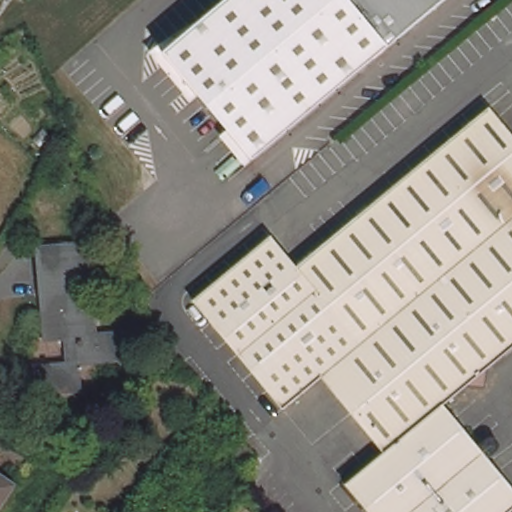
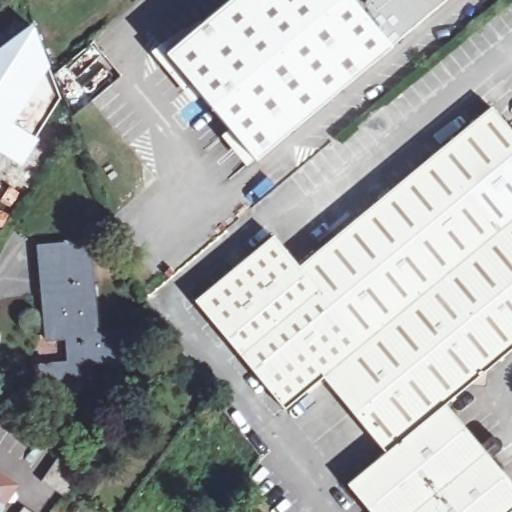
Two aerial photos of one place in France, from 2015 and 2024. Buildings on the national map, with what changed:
unchanged [(250,150),(161,42),(212,0),(430,0),(250,150)]
new [(60,96),(35,137),(18,165),(0,153),(0,44),(31,21),(60,96)]
unchanged [(444,404),(512,488),(512,512),(370,512),(347,484),(385,454),(322,376),(284,408),(194,300),(273,237),(298,267),(490,107),(512,133),(512,349),(444,404)]
unchanged [(89,242),(97,334),(132,332),(134,359),(81,364),(83,390),(40,394),(38,366),(71,363),(68,337),(46,339),(39,246),(89,242)]
new [(84,473),(67,496),(44,481),(60,456),(84,473)]
unchanged [(0,476),(15,485),(0,507),(0,476)]
new [(36,512),(23,512),(27,505),(36,512)]

